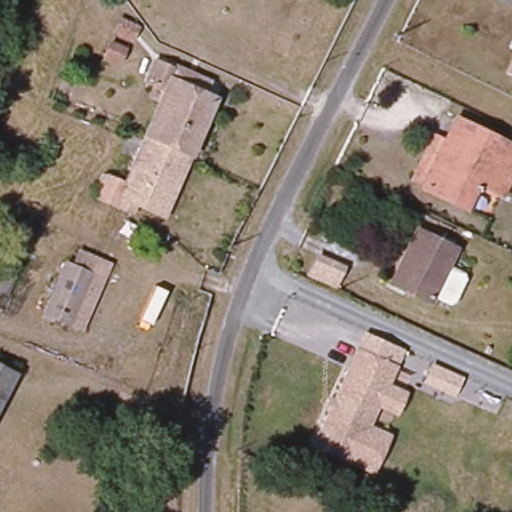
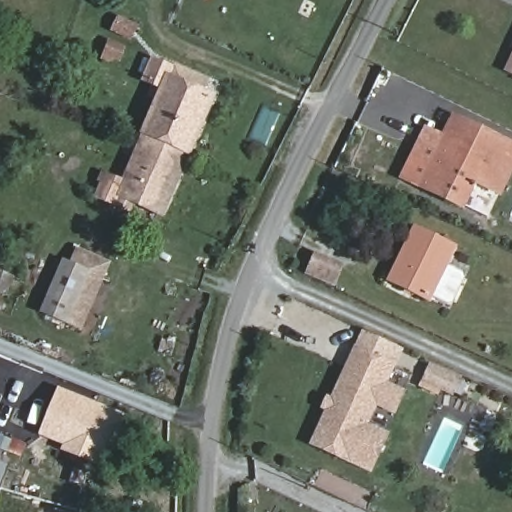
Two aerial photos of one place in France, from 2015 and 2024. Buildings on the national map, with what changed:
unchanged [(512,58),(512,71),(507,69),(512,58)]
unchanged [(162,90),(142,81),(151,61),(180,72),(175,84),(211,99),(187,157),(170,150),(142,139),(162,90)]
unchanged [(512,170),(500,196),(476,184),(464,207),(421,187),(408,181),(433,133),(444,139),(456,117),(512,145),(512,170)]
unchanged [(170,150),(187,157),(163,214),(127,199),(122,210),(95,199),(103,176),(123,182),(142,139),(170,150)]
unchanged [(452,309),(432,299),(431,301),(390,282),(415,229),(456,250),(447,267),(467,277),(452,309)]
unchanged [(101,271),(81,317),(56,307),(76,261),(101,271)]
unchanged [(333,285),(309,274),(315,261),(340,272),(333,285)]
unchanged [(369,471),(312,445),(347,369),(356,351),(372,359),(392,367),(383,386),(402,394),(382,435),(385,436),(369,471)]
unchanged [(422,385),(431,363),(462,376),(453,397),(422,385)]
unchanged [(17,377),(0,408),(0,368),(17,377)]
new [(59,387),(126,415),(105,467),(61,451),(62,446),(39,435),(59,387)]

